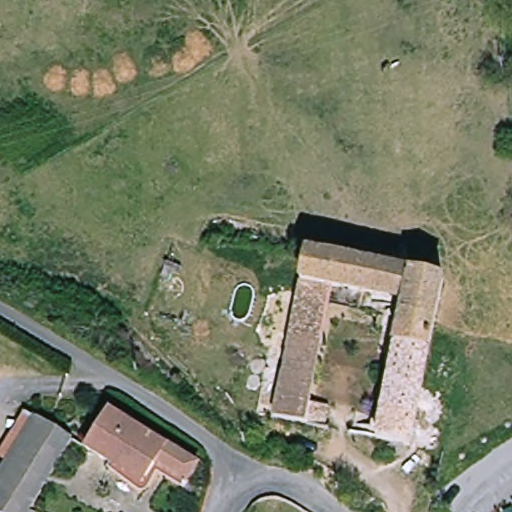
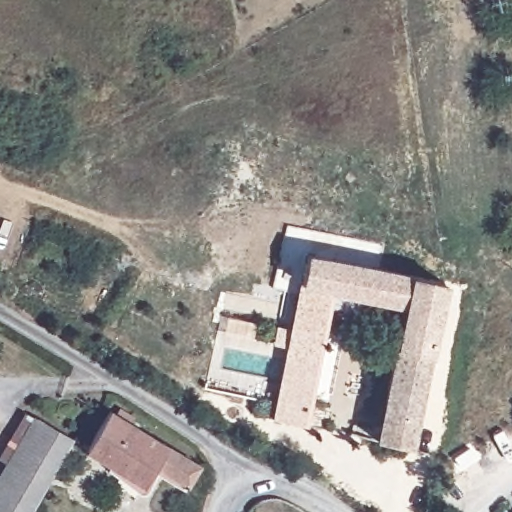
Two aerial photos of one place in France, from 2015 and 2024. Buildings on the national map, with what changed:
unchanged [(390,295),(386,310),(338,300),(315,393),(336,398),(331,424),(275,412),(306,272),(310,251),(449,278),(416,441),(359,430),(361,420),(373,423),(377,408),(386,410),(411,299),(390,295)]
unchanged [(71,429),(24,512),(10,512),(0,506),(0,465),(33,407),(71,429)]
unchanged [(128,471),(89,447),(110,410),(202,466),(191,483),(159,464),(152,475),(147,483),(128,471)]

